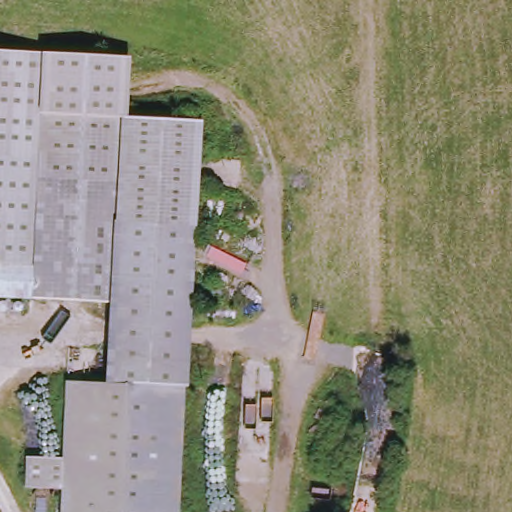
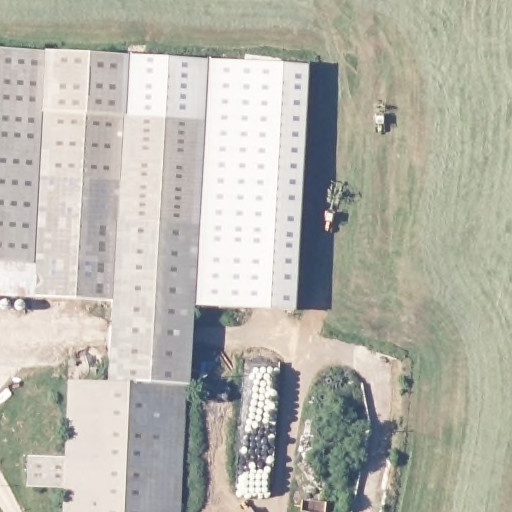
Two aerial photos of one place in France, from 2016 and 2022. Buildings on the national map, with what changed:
unchanged [(130,56),(126,116),(202,120),(187,385),(107,382),(111,302),(0,295),(0,49),(130,56)]
new [(202,120),(126,116),(130,56),(306,66),(292,312),(192,306),(202,120)]
unchanged [(26,486),(28,456),(65,457),(68,382),(185,387),(180,512),(62,512),(63,487),(26,486)]

